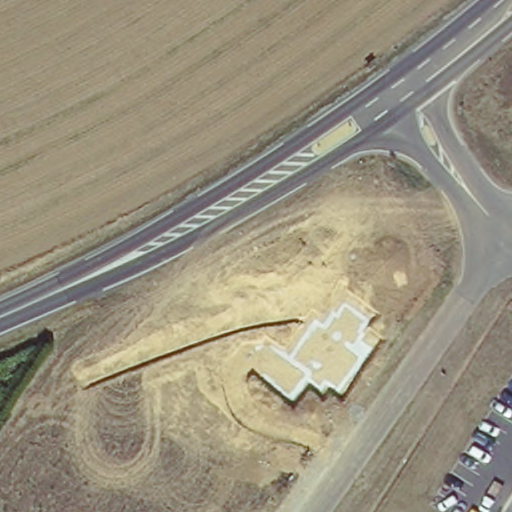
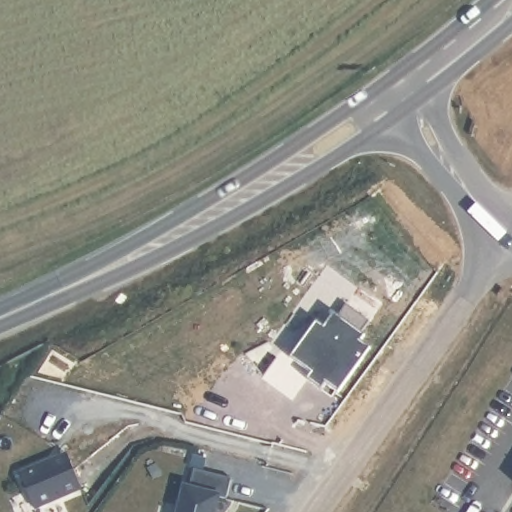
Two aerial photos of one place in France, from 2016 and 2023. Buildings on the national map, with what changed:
new [(367,318),(359,330),(335,313),(343,302),(367,318)]
new [(351,349),(361,355),(336,391),(309,371),(289,398),(259,377),(279,350),(288,356),(314,319),(322,325),(331,311),(359,330),(362,333),(351,349)]
new [(351,349),(358,338),(368,345),(361,355),(351,349)]
new [(319,388),(304,377),(309,371),(324,382),(319,388)]
new [(24,474),(72,454),(86,488),(39,507),(24,474)]
new [(184,482),(188,483),(193,464),(230,473),(225,494),(218,493),(214,512),(177,512),(184,482)]

